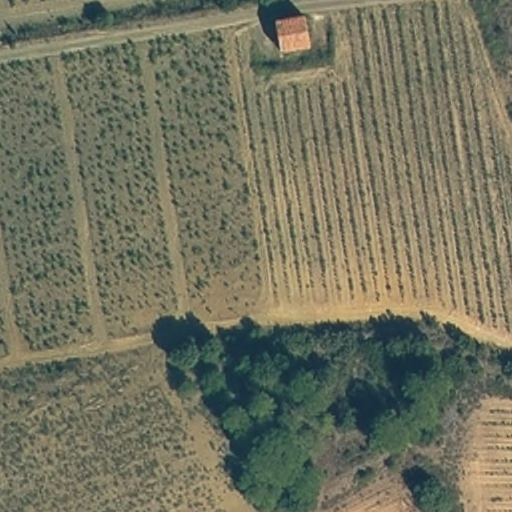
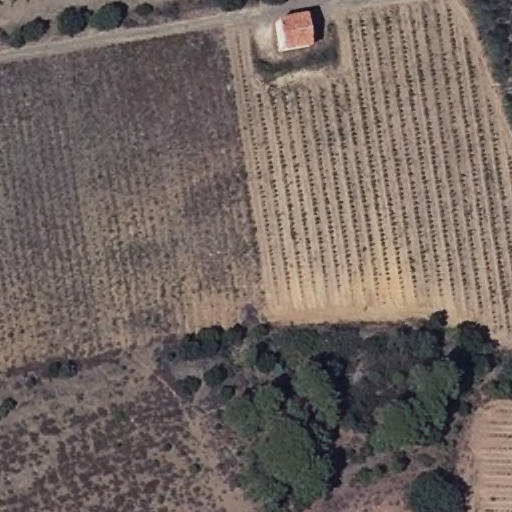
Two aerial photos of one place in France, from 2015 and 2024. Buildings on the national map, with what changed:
unchanged [(311,41),(281,46),(276,14),(306,10),(311,41)]

